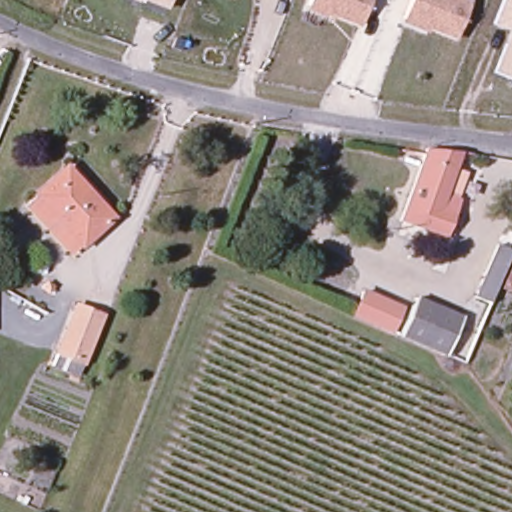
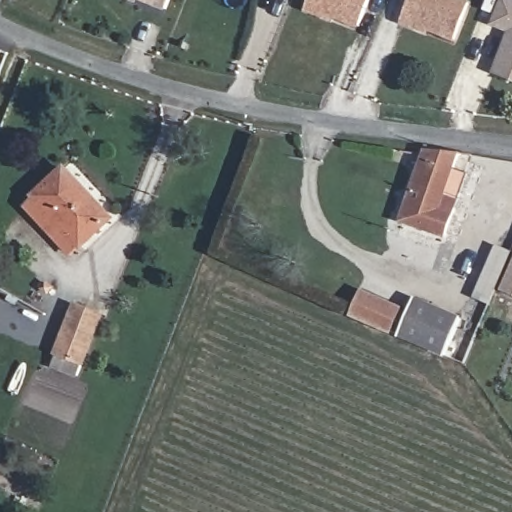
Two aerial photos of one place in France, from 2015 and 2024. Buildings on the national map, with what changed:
unchanged [(170,9),(146,0),(173,0),(170,9)]
unchanged [(363,26),(336,15),(331,22),(308,14),(313,0),(374,0),(363,26)]
unchanged [(459,39),(434,30),(429,35),(405,25),(414,0),(471,0),(459,39)]
unchanged [(497,23),(505,0),(512,0),(512,28),(497,23)]
unchanged [(501,72),(512,42),(512,77),(501,72)]
unchanged [(443,199),(451,202),(435,246),(400,229),(426,150),(457,156),(443,199)]
unchanged [(64,171),(105,221),(72,246),(35,194),(64,171)]
unchanged [(477,325),(462,316),(493,245),(509,252),(477,325)]
unchanged [(507,279),(512,266),(512,281),(507,279)]
unchanged [(362,296),(397,315),(385,337),(353,320),(362,296)]
unchanged [(398,340),(415,302),(457,325),(441,362),(398,340)]
unchanged [(54,356),(71,309),(97,320),(80,366),(54,356)]

